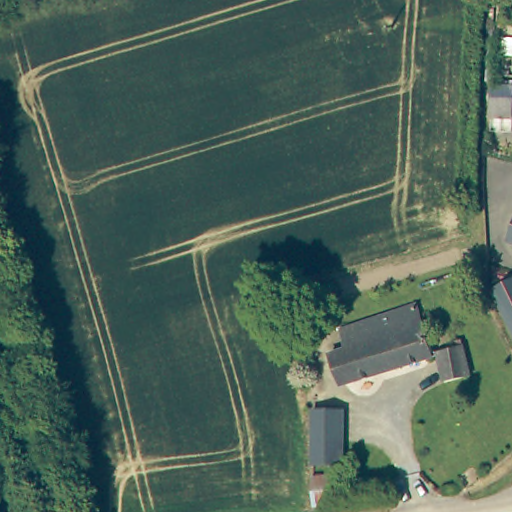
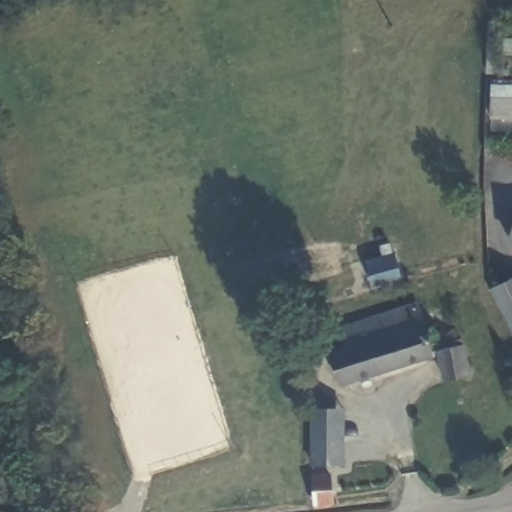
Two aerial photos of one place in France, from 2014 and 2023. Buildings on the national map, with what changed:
unchanged [(512,234),(512,244),(508,242),(512,234)]
unchanged [(512,277),(512,329),(492,285),(512,277)]
unchanged [(340,385),(330,354),(347,348),(341,329),(416,304),(433,355),(340,385)]
unchanged [(453,345),(452,340),(458,338),(469,373),(444,381),(435,351),(453,345)]
unchanged [(342,407),(341,460),(312,459),(312,407),(342,407)]
unchanged [(306,472),(325,471),(327,498),(308,500),(306,472)]

